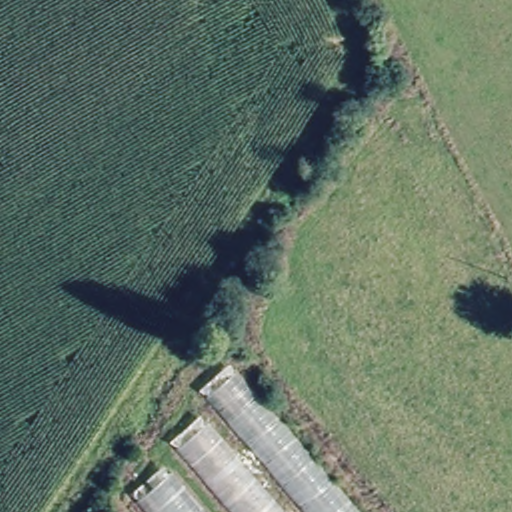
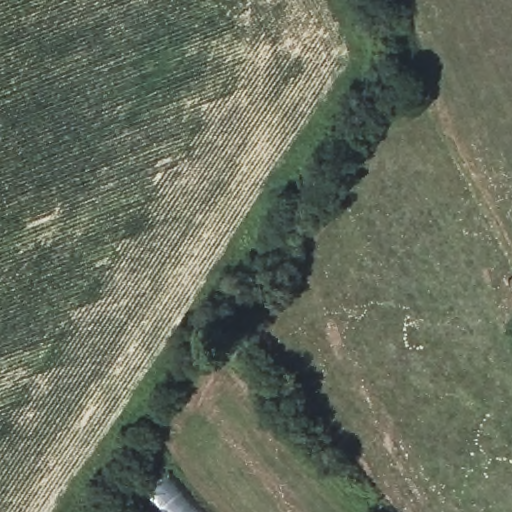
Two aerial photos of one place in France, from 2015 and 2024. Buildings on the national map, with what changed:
demolished [(185,465),(175,451),(220,416),(198,388),(230,366),(355,512),(149,512),(139,500),(185,465)]
new [(140,512),(135,506),(169,473),(203,512),(140,512)]

